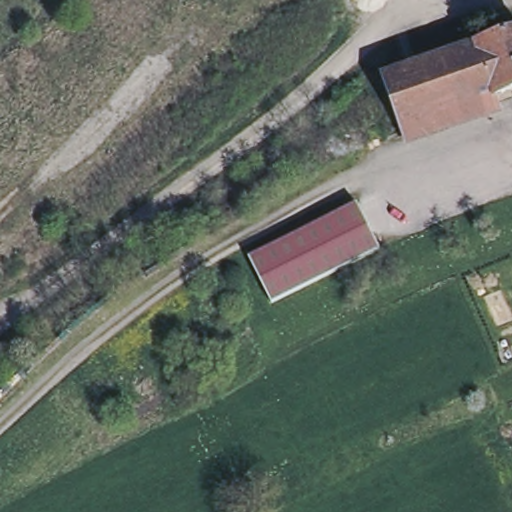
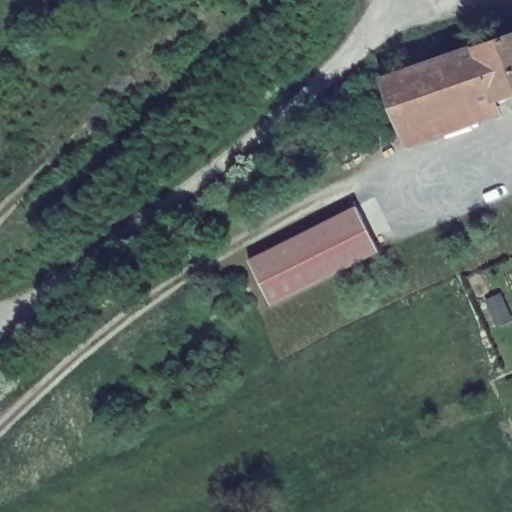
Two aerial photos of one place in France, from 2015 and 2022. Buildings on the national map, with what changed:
unchanged [(399,135),(380,81),(512,36),(512,96),(399,135)]
unchanged [(378,254),(268,307),(247,261),(358,208),(378,254)]
unchanged [(0,415),(0,410),(3,412),(0,415)]

